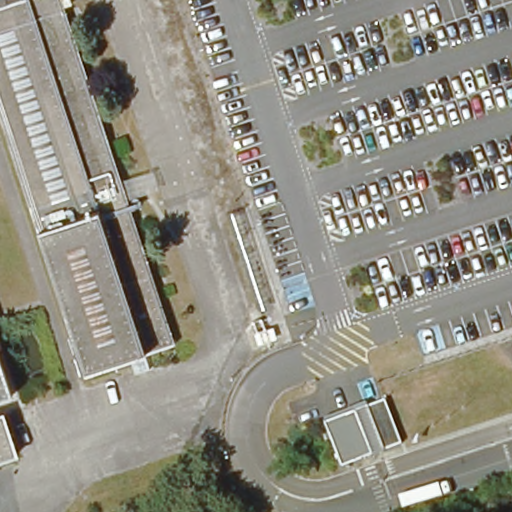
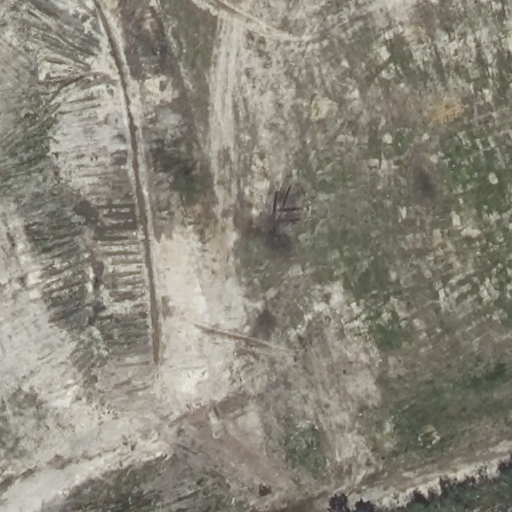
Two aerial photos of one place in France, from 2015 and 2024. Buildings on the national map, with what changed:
demolished [(170,348),(82,381),(0,129),(0,0),(52,0),(170,348)]
demolished [(211,162),(184,171),(186,180),(216,172),(226,204),(169,223),(96,0),(159,0),(211,162)]
demolished [(376,411),(390,452),(330,472),(317,431),(376,411)]
demolished [(0,467),(0,425),(13,462),(0,467)]

